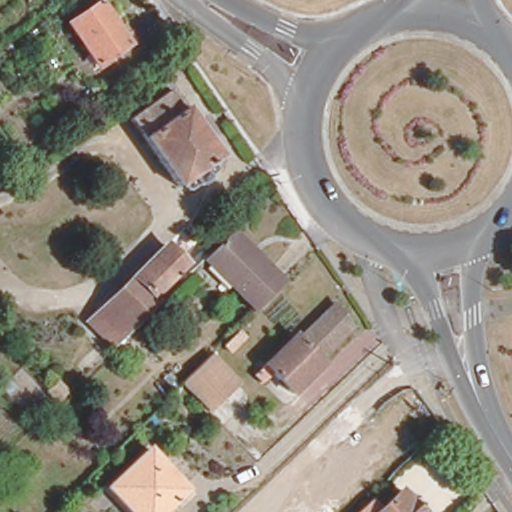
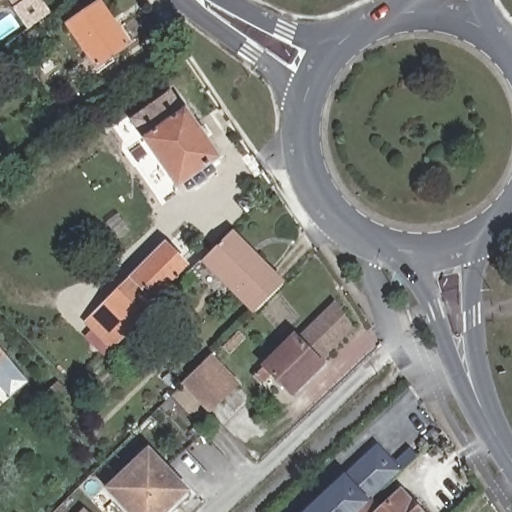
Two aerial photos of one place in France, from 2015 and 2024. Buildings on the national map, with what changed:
new [(11,0),(14,0),(12,1),(11,0)]
unchanged [(105,8),(135,50),(103,73),(73,30),(105,8)]
unchanged [(142,139),(127,120),(168,94),(184,109),(142,139)]
unchanged [(186,110),(219,158),(178,187),(144,139),(186,110)]
unchanged [(206,257),(232,231),(283,285),(254,313),(202,260),(206,257)]
unchanged [(186,266),(154,298),(158,302),(111,348),(86,322),(165,244),(186,266)]
unchanged [(294,332),(300,337),(333,303),(351,330),(321,360),(323,361),(293,390),(267,363),(265,361),(294,332)]
unchanged [(236,331),(265,361),(267,363),(230,400),(199,368),(225,342),(236,331)]
new [(29,382),(9,399),(0,388),(0,348),(29,382)]
new [(422,512),(302,512),(343,472),(346,475),(377,443),(394,461),(408,448),(416,456),(401,471),(372,501),(382,511),(402,491),(422,512)]
unchanged [(149,450),(189,491),(168,512),(130,512),(107,490),(149,450)]
demolished [(402,491),(422,512),(381,512),(382,511),(402,491)]
new [(84,508),(88,512),(80,512),(84,508)]

